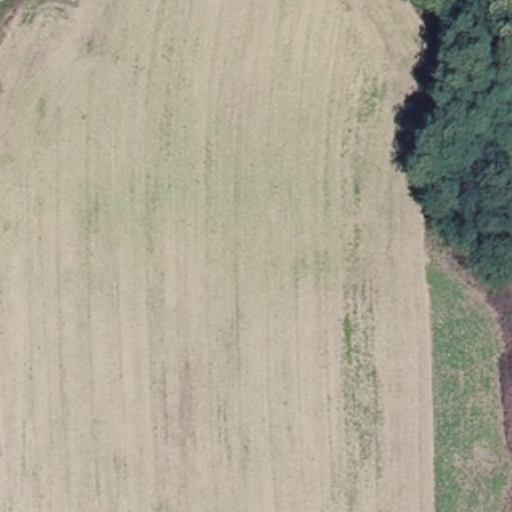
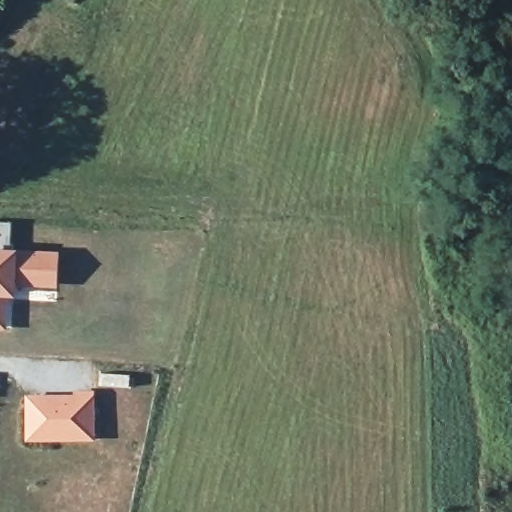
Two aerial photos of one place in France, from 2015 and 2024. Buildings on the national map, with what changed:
new [(11,222),(10,248),(60,251),(58,288),(34,289),(34,292),(25,292),(25,293),(20,293),(19,298),(13,297),(10,331),(0,330),(0,221),(11,222)]
new [(25,395),(96,390),(96,441),(25,442),(25,395)]

